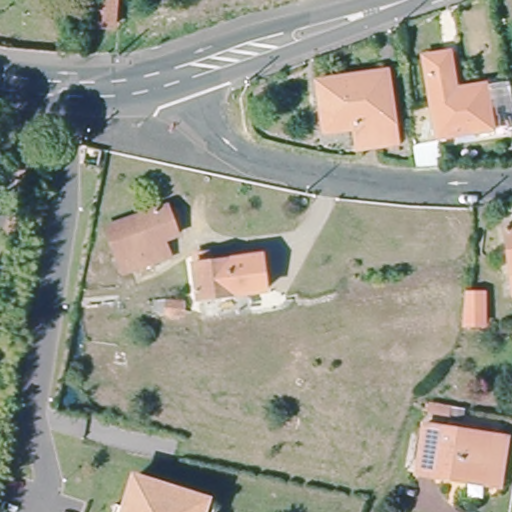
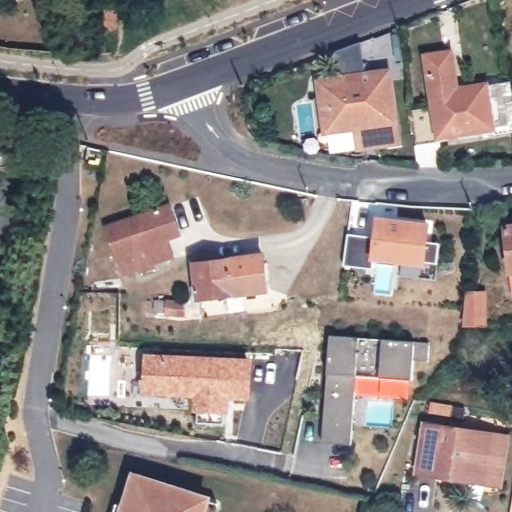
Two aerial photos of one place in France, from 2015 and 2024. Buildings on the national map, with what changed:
unchanged [(117,30),(95,28),(97,0),(119,0),(117,30)]
unchanged [(432,95),(425,60),(450,56),(456,91),(485,87),(488,104),(494,103),(496,119),(490,120),(492,129),(416,141),(410,100),(432,95)]
unchanged [(381,75),(390,145),(358,149),(356,126),(323,131),(317,84),(381,75)]
unchanged [(124,272),(109,227),(170,206),(180,235),(166,240),(171,256),(124,272)]
unchanged [(436,267),(423,265),(374,260),(372,271),(343,267),(347,236),(375,239),(377,221),(427,227),(425,244),(439,246),(436,267)]
unchanged [(512,272),(510,272),(505,226),(512,225),(512,272)]
unchanged [(219,261),(263,255),(268,290),(201,298),(195,254),(217,251),(219,261)]
unchanged [(467,297),(483,298),(480,327),(465,327),(467,297)]
new [(330,333),(430,340),(429,359),(415,358),(413,377),(358,373),(353,442),(323,440),(330,333)]
new [(143,352),(253,357),(250,398),(231,397),(229,414),(192,412),(192,397),(141,395),(143,352)]
unchanged [(448,478),(449,471),(420,466),(427,423),(491,435),(510,438),(502,480),(485,476),(479,476),(477,482),(448,478)]
unchanged [(130,504),(139,474),(208,495),(222,499),(219,512),(117,512),(120,501),(130,504)]

